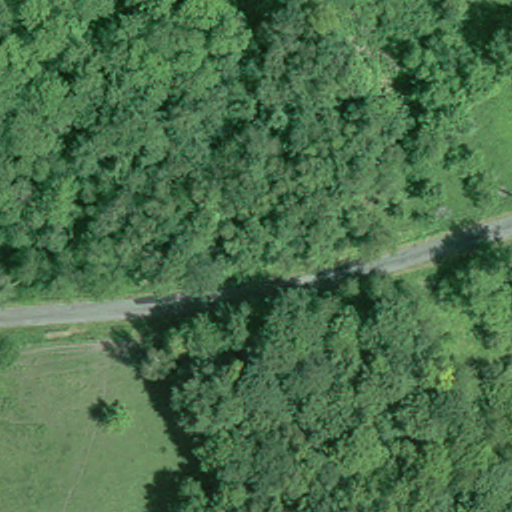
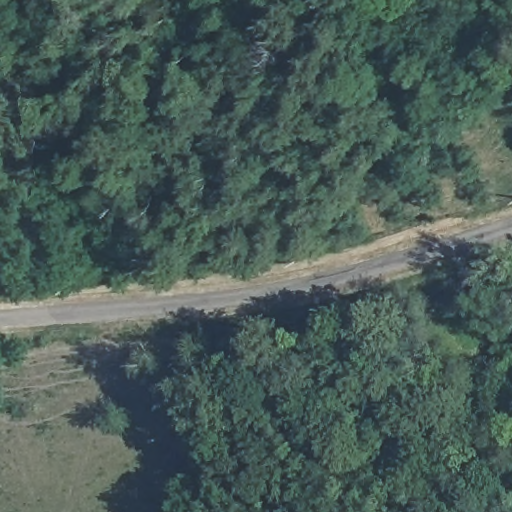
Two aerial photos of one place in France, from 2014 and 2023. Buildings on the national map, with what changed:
[]

